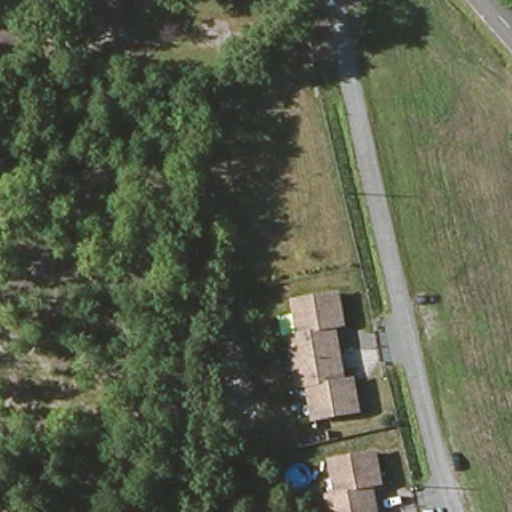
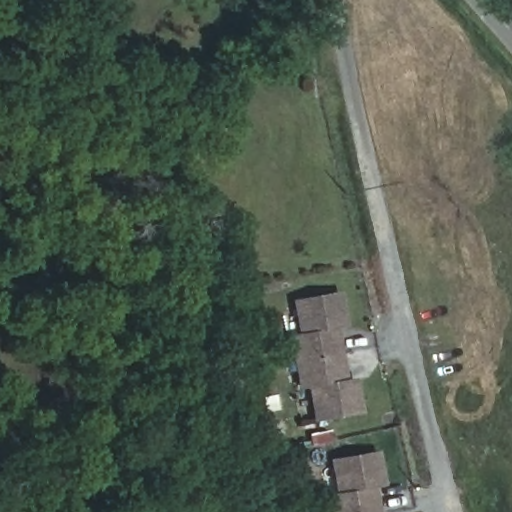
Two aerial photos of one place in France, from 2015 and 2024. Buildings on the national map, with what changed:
unchanged [(124,26),(100,22),(96,21),(100,4),(127,9),(124,26)]
unchanged [(343,359),(300,367),(295,343),(305,342),(298,307),(341,300),(347,330),(334,332),(336,344),(340,343),(343,359)]
unchanged [(346,376),(342,376),(345,388),(357,386),(363,416),(320,424),(313,390),(304,392),(300,367),(343,359),(346,376)]
unchanged [(385,502),(386,512),(341,512),(340,502),(348,500),(342,466),(385,458),(391,489),(378,491),(380,502),(385,502)]

